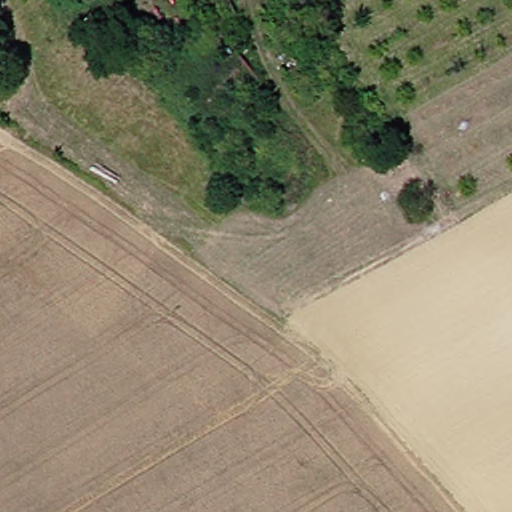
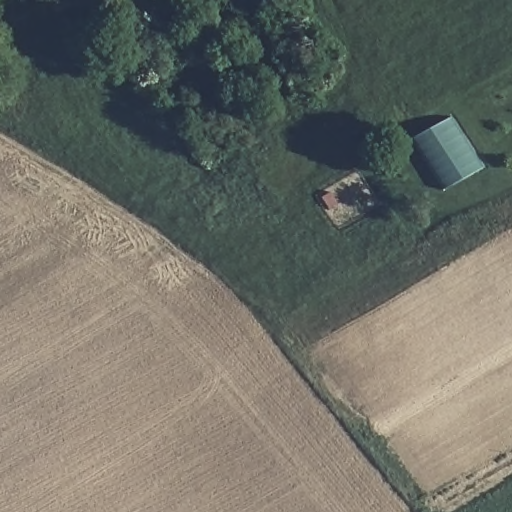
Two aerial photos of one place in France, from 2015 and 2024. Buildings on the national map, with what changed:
new [(482,166),(443,191),(412,139),(450,116),(482,166)]

